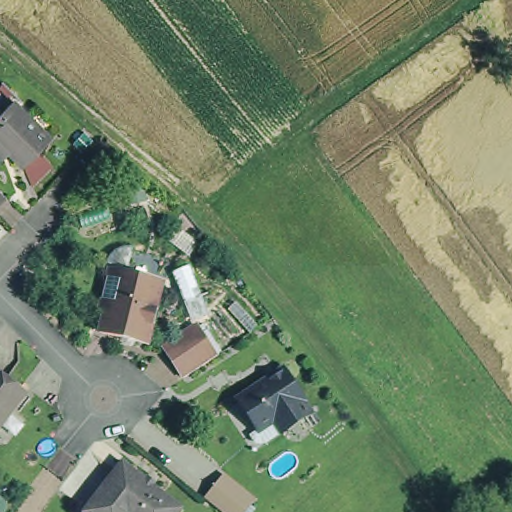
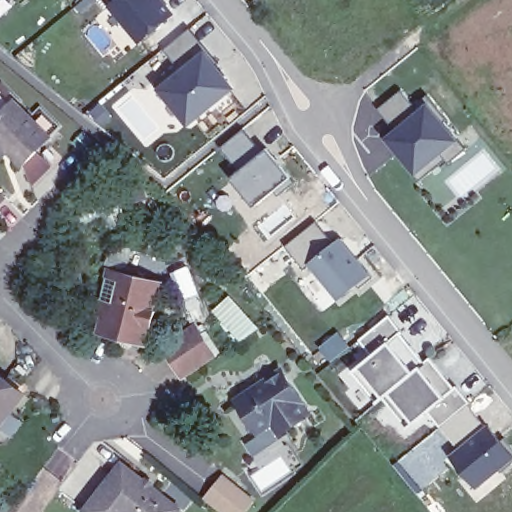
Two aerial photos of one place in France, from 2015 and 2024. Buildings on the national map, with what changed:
new [(108,0),(158,0),(171,15),(136,44),(103,5),(108,0)]
new [(200,50),(230,87),(179,128),(148,88),(200,50)]
new [(450,165),(445,160),(420,182),(413,175),(382,138),(393,128),(378,110),(403,90),(415,105),(428,95),(447,119),(445,120),(468,149),(450,165)]
unchanged [(14,101),(52,140),(23,169),(11,156),(3,164),(0,160),(0,115),(14,101)]
new [(261,149),(287,180),(243,212),(221,180),(261,149)]
unchanged [(5,202),(0,208),(0,196),(5,202)]
new [(336,237),(370,278),(336,303),(300,264),(336,237)]
unchanged [(105,337),(109,319),(102,317),(115,273),(147,281),(165,285),(162,296),(152,347),(105,337)]
new [(388,316),(400,331),(395,335),(417,362),(428,357),(450,390),(455,386),(467,403),(435,428),(426,416),(401,439),(374,405),(349,372),(370,356),(357,340),(388,316)]
unchanged [(187,331),(196,325),(215,353),(205,360),(181,375),(162,346),(187,331)]
unchanged [(261,445),(253,442),(250,436),(258,431),(240,399),(270,380),(286,370),(288,375),(313,417),(284,435),(267,445),(261,445)]
unchanged [(24,392),(0,423),(0,375),(24,392)]
new [(512,457),(512,460),(468,495),(438,462),(483,425),(512,457)]
unchanged [(186,512),(90,512),(127,467),(186,512)]
unchanged [(215,490),(225,478),(255,503),(248,512),(218,512),(206,502),(215,490)]

